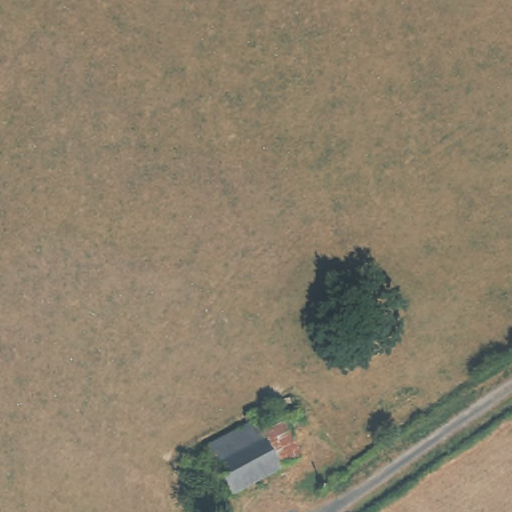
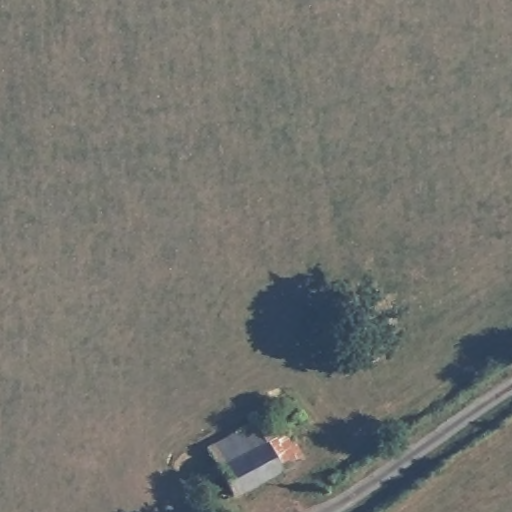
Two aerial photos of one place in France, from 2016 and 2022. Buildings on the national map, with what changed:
unchanged [(234,495),(215,463),(208,446),(252,420),(250,412),(274,400),(288,422),(262,435),(275,472),(234,495)]

